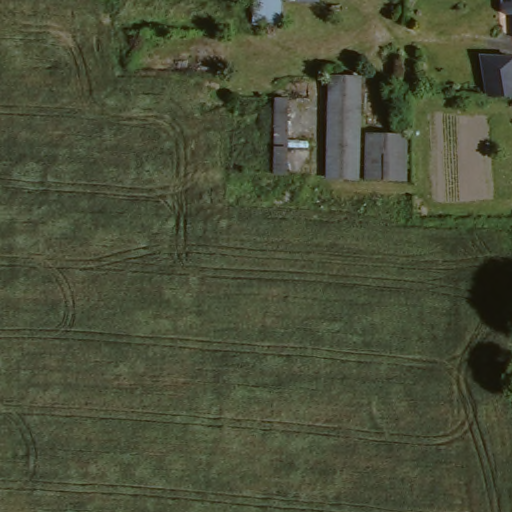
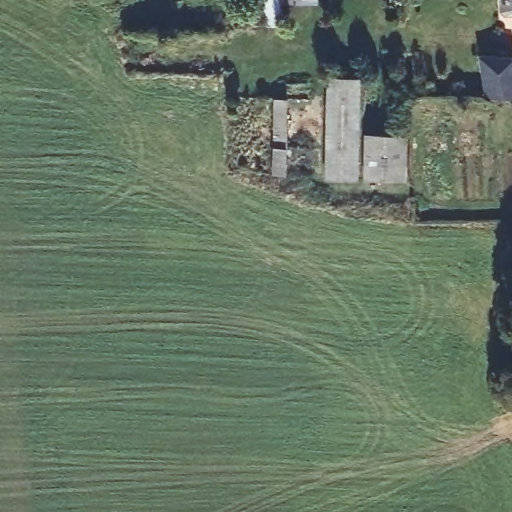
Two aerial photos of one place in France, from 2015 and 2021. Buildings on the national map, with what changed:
unchanged [(300,1),(300,24),(252,24),(252,0),(334,0),(334,2),(300,1)]
unchanged [(504,17),(501,14),(500,0),(512,0),(512,17),(504,17)]
unchanged [(512,56),(512,98),(482,97),(482,55),(512,56)]
unchanged [(328,77),(358,79),(357,161),(357,178),(325,177),(328,77)]
unchanged [(273,99),(287,99),(285,174),(271,174),(273,99)]
unchanged [(392,115),(407,115),(406,129),(392,128),(392,115)]
unchanged [(366,134),(406,135),(404,179),(364,178),(366,134)]

